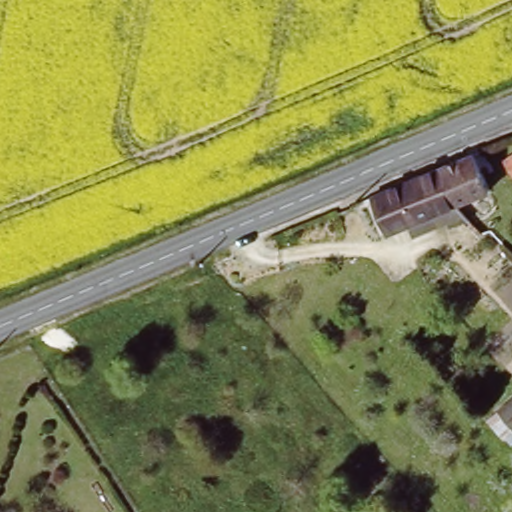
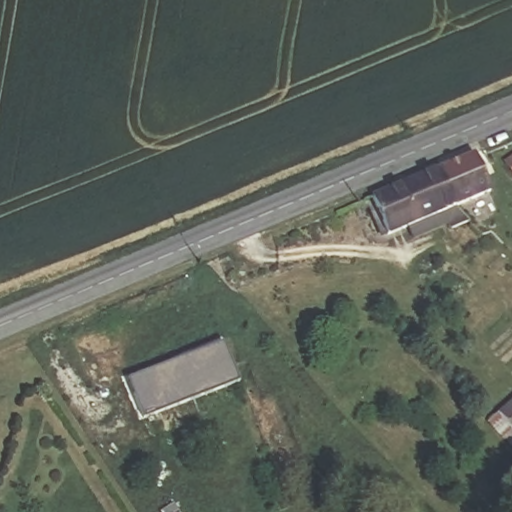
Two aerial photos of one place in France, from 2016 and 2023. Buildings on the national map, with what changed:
unchanged [(488,147),(512,137),(512,172),(505,174),(488,147)]
unchanged [(472,156),(489,197),(459,210),(442,168),(472,156)]
unchanged [(459,210),(439,217),(436,209),(390,226),(378,195),(442,168),(459,210)]
unchanged [(462,258),(448,245),(468,226),(481,240),(462,258)]
new [(144,417),(127,376),(225,340),(241,381),(144,417)]
unchanged [(512,403),(512,423),(502,413),(512,403)]

